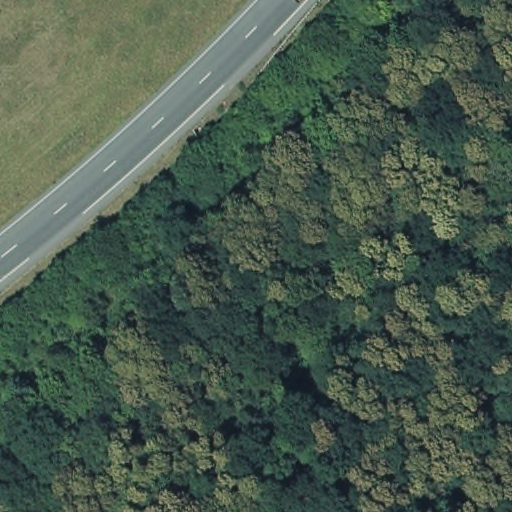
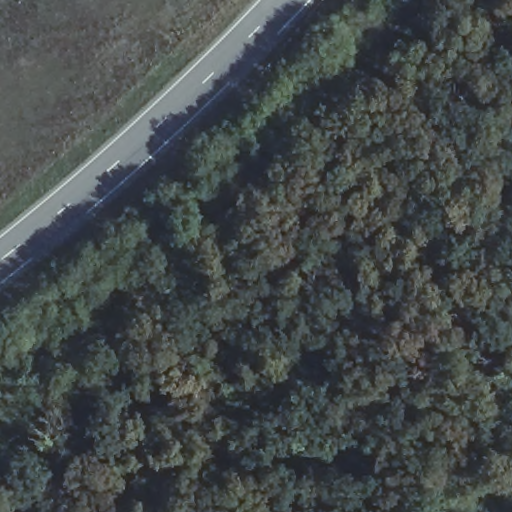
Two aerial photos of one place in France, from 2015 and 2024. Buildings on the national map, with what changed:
[]

